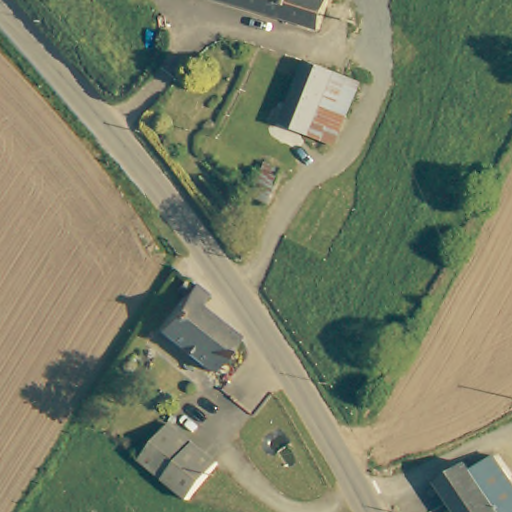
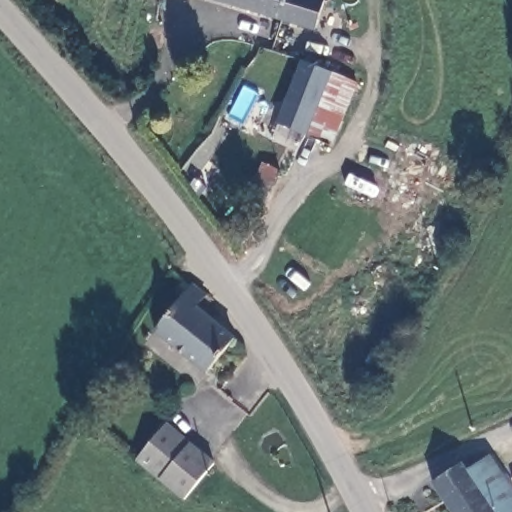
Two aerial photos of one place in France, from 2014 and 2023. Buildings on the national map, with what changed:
unchanged [(315,32),(213,0),(326,0),(315,32)]
unchanged [(294,134),(282,130),(273,126),(294,67),(296,60),(327,70),(303,137),(294,134)]
unchanged [(303,137),(327,70),(338,73),(354,78),(330,145),(315,141),(303,137)]
unchanged [(172,285),(180,276),(189,282),(194,277),(206,292),(195,305),(232,336),(204,369),(152,329),(183,293),(175,287),(172,285)]
unchanged [(185,495),(136,457),(162,422),(212,459),(185,495)]
unchanged [(458,461),(463,468),(486,452),(512,491),(512,509),(509,512),(450,512),(429,480),(458,461)]

